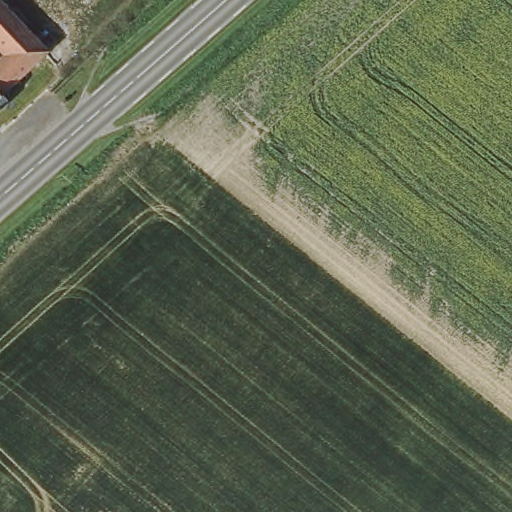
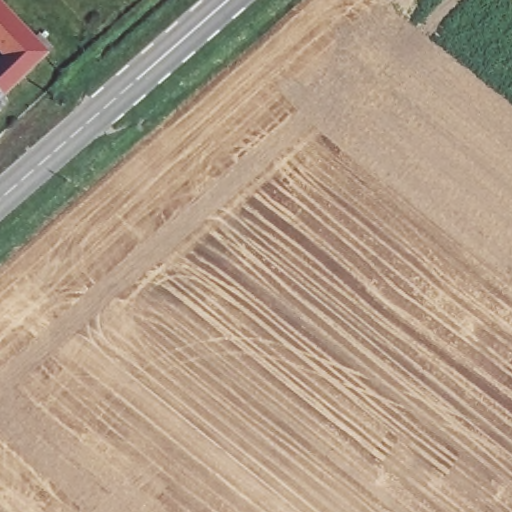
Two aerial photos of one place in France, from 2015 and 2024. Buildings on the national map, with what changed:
unchanged [(0,105),(0,53),(3,50),(0,47),(0,0),(1,0),(38,40),(45,34),(55,45),(48,51),(3,93),(7,98),(0,105)]

